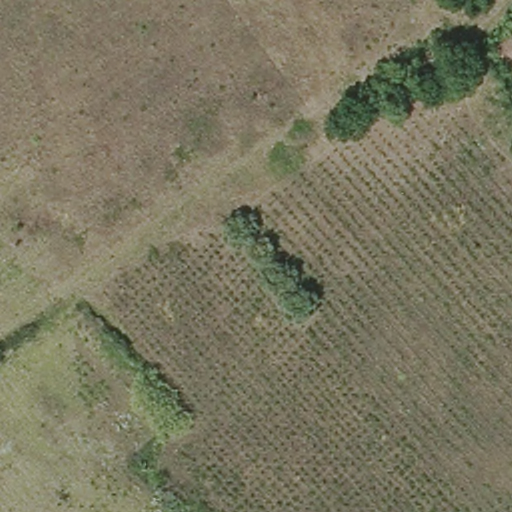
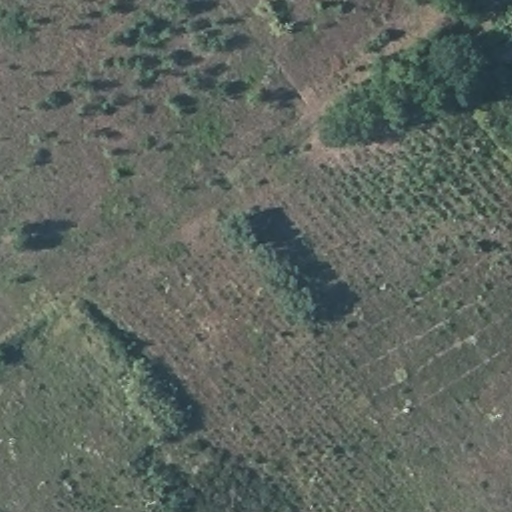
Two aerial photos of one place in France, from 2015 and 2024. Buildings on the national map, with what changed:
unchanged [(512,35),(512,53),(501,61),(493,45),(509,32),(512,35)]

